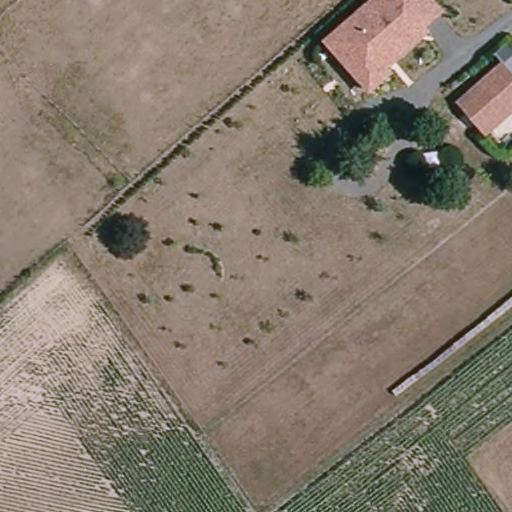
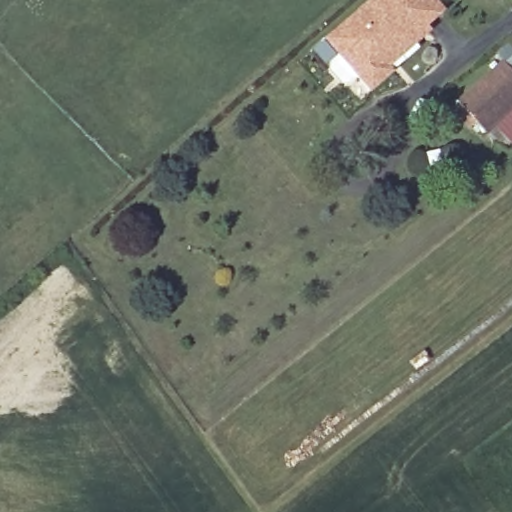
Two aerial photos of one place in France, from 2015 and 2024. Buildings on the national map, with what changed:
unchanged [(437,0),(446,11),(428,26),(429,34),(391,67),(392,75),(372,92),(325,40),(370,0),(437,0)]
unchanged [(512,92),(512,100),(479,128),(461,107),(498,76),(512,92)]

